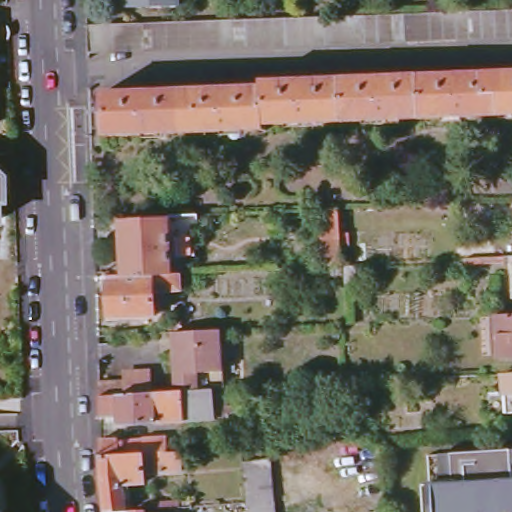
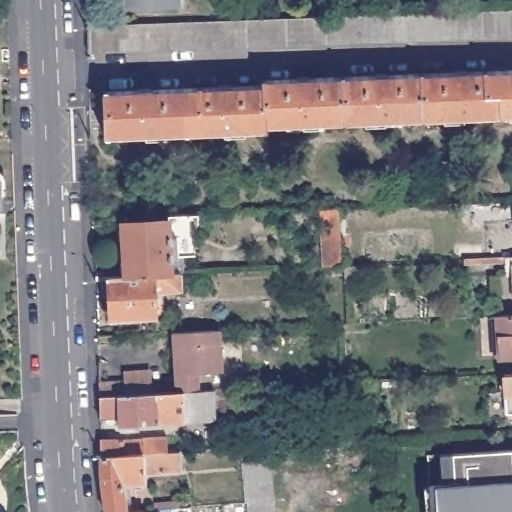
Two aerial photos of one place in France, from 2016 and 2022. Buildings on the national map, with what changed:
unchanged [(131,11),(131,0),(182,0),(182,8),(131,11)]
unchanged [(512,10),(512,38),(97,53),(95,24),(362,15),(512,10)]
unchanged [(262,79),(512,70),(512,115),(264,124),(263,130),(107,135),(105,89),(262,84),(262,79)]
unchanged [(2,184),(2,210),(0,210),(0,182),(2,184)]
unchanged [(337,214),(339,269),(328,270),(325,214),(337,214)]
unchanged [(123,279),(120,228),(167,227),(167,239),(175,239),(176,264),(168,264),(168,278),(164,278),(139,279),(123,279)]
unchanged [(123,279),(139,279),(164,278),(168,278),(175,277),(177,294),(157,295),(158,318),(151,318),(151,321),(107,323),(105,303),(99,303),(97,280),(123,279)]
unchanged [(512,314),(512,357),(499,358),(496,315),(502,314),(512,314)]
unchanged [(173,337),(220,334),(224,392),(217,392),(218,423),(187,425),(160,427),(119,429),(118,422),(100,423),(100,399),(117,398),(157,396),(176,394),(173,337)]
unchanged [(504,372),(512,371),(512,410),(508,411),(504,372)]
unchanged [(171,461),(162,461),(162,474),(148,474),(147,480),(130,481),(130,508),(106,509),(105,509),(102,474),(102,453),(101,439),(115,438),(116,440),(137,439),(137,437),(162,435),(163,449),(171,449),(171,461)]
unchanged [(430,499),(435,498),(433,484),(453,482),(452,452),(512,448),(512,456),(512,512),(430,512),(430,499)]
unchanged [(269,458),(275,512),(246,512),(240,460),(269,458)]

